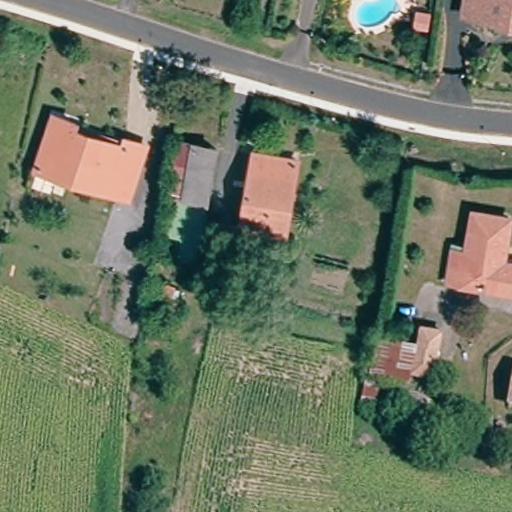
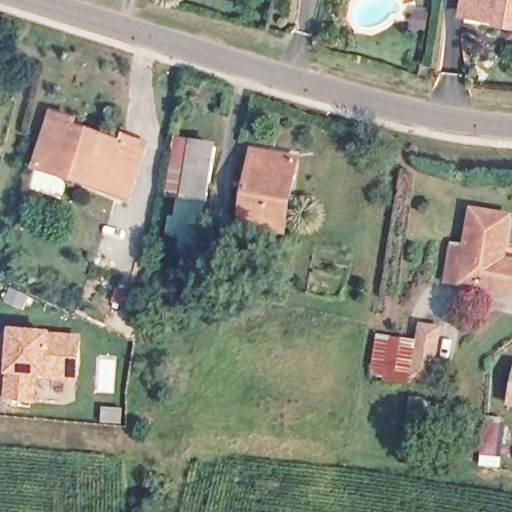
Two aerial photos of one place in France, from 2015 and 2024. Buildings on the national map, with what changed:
unchanged [(461,0),(512,0),(512,18),(497,16),(459,11),(461,0)]
unchanged [(120,132),(139,140),(125,190),(31,160),(47,110),(70,116),(67,125),(117,137),(120,132)]
unchanged [(191,150),(215,155),(207,205),(182,200),(191,150)]
unchanged [(285,235),(242,228),(254,154),(297,164),(285,235)]
unchanged [(173,252),(182,200),(207,205),(199,256),(173,252)]
unchanged [(452,252),(470,255),(473,220),(511,225),(507,254),(512,255),(512,294),(447,285),(452,252)]
unchanged [(418,340),(421,323),(446,327),(436,383),(413,378),(411,389),(371,381),(378,335),(418,340)]
new [(53,335),(83,335),(79,385),(47,381),(39,380),(37,404),(5,402),(7,376),(11,331),(53,335)]
unchanged [(506,376),(512,377),(512,417),(501,415),(506,376)]

